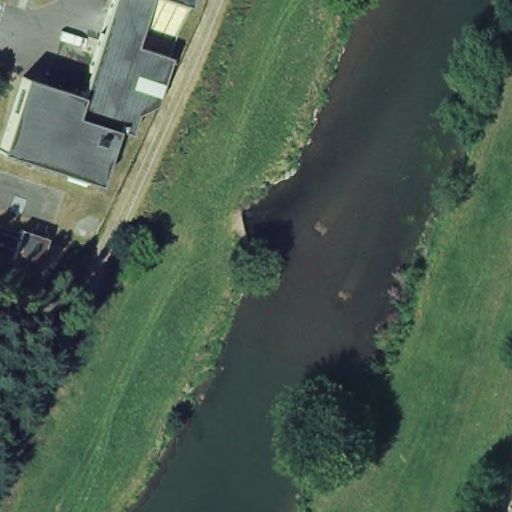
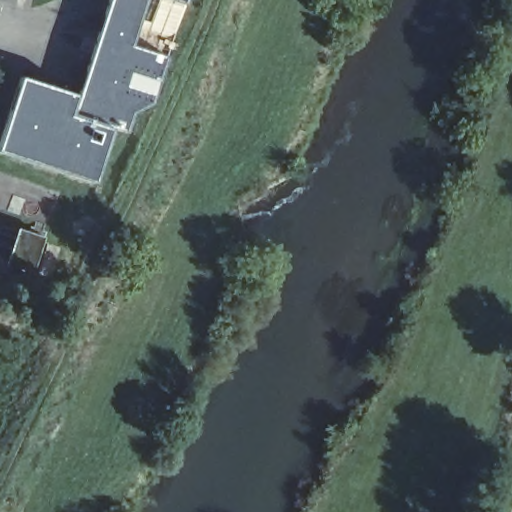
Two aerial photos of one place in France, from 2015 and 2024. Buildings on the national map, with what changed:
unchanged [(76,84),(103,0),(181,0),(151,92),(132,103),(125,121),(111,117),(94,174),(0,141),(0,123),(20,65),(76,84)]
unchanged [(6,259),(17,223),(43,231),(31,267),(6,259)]

